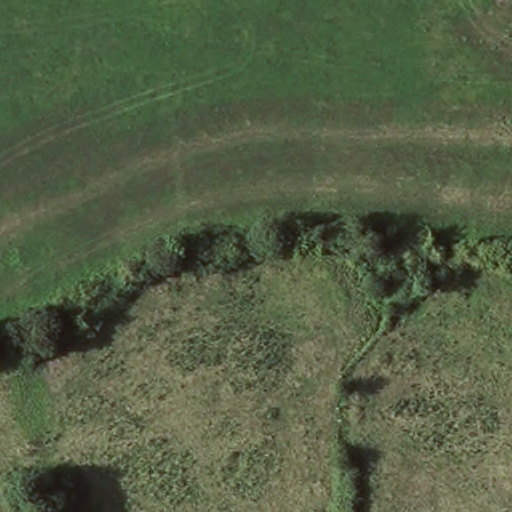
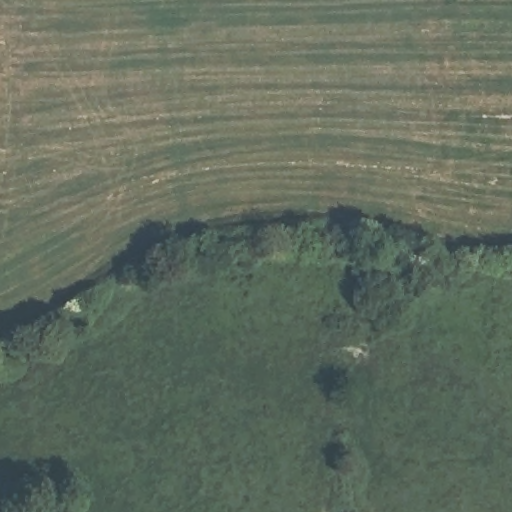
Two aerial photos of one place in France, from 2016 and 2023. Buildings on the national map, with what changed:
unchanged [(44,482),(49,500),(16,507),(12,489),(44,482)]

